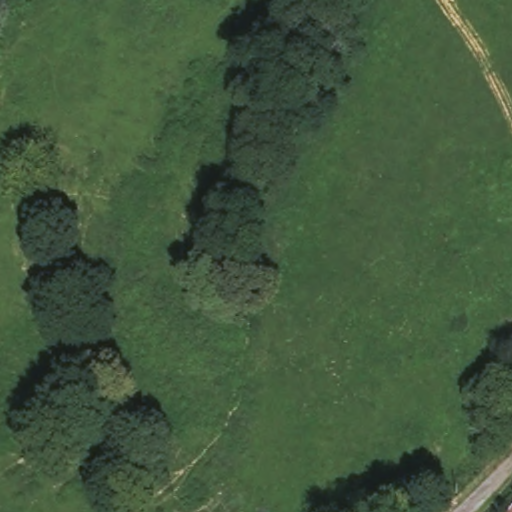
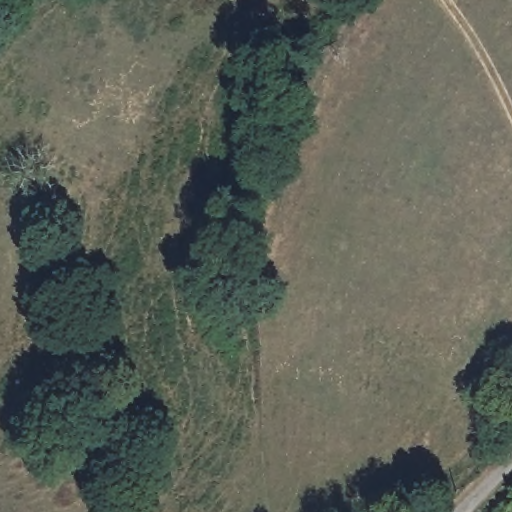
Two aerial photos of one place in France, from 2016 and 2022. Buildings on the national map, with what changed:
unchanged [(509,497),(512,495),(512,500),(509,497)]

